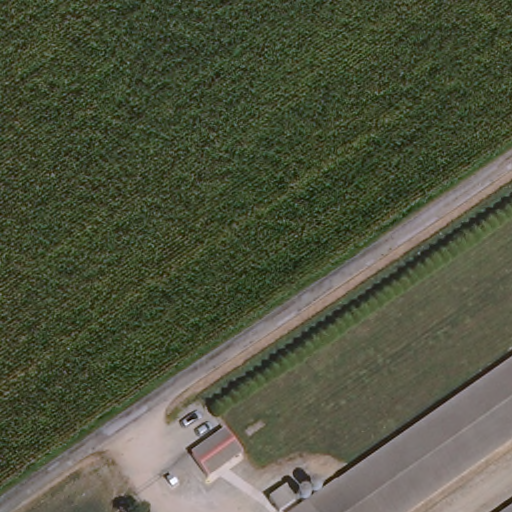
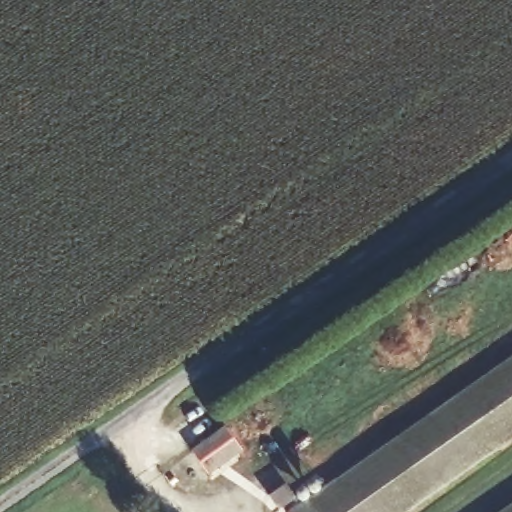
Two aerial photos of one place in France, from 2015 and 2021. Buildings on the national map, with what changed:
unchanged [(400,512),(310,512),(305,504),(331,485),(512,359),(512,434),(400,512)]
unchanged [(242,452),(206,477),(191,454),(226,430),(242,452)]

